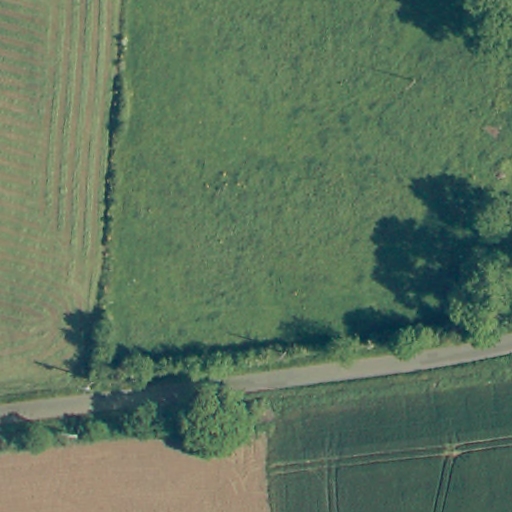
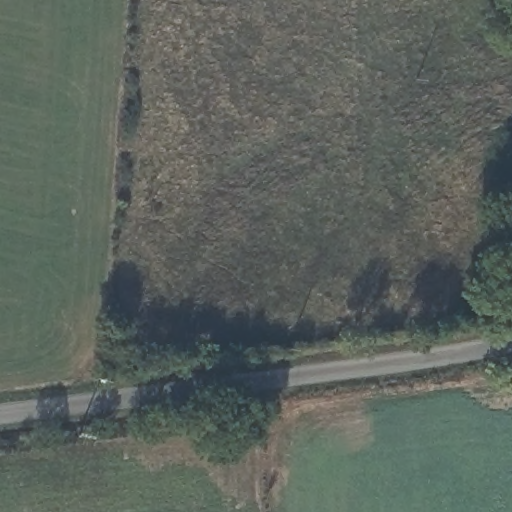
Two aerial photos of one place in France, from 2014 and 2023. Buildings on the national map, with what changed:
unchanged [(10,445),(11,449),(0,452),(0,437),(9,435),(10,445)]

